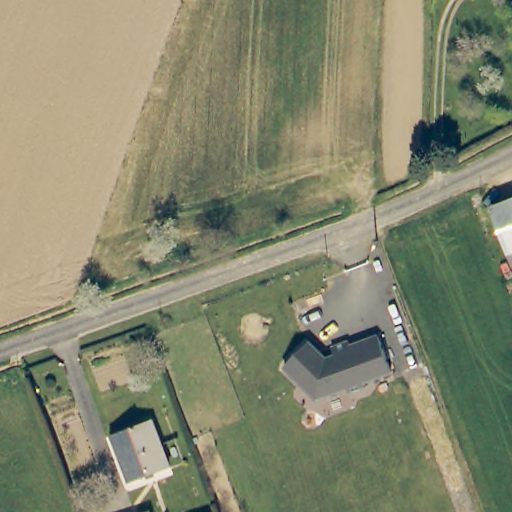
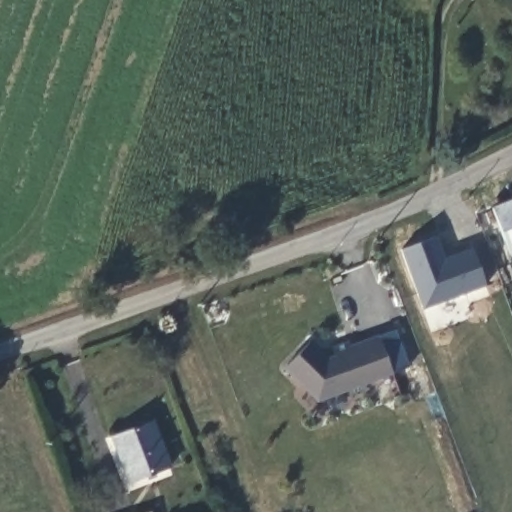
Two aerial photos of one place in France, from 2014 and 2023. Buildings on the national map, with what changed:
unchanged [(491,209),(512,201),(512,261),(491,209)]
new [(486,285),(427,308),(403,247),(436,235),(447,263),(459,259),(456,253),(471,247),(486,285)]
new [(459,259),(447,263),(445,257),(456,253),(459,259)]
unchanged [(282,367),(307,341),(326,360),(333,357),(330,346),(346,340),(348,344),(349,344),(376,334),(390,371),(363,381),(362,382),(363,386),(347,392),(345,388),(315,399),(282,367)]
unchanged [(152,418),(170,464),(130,479),(113,433),(152,418)]

